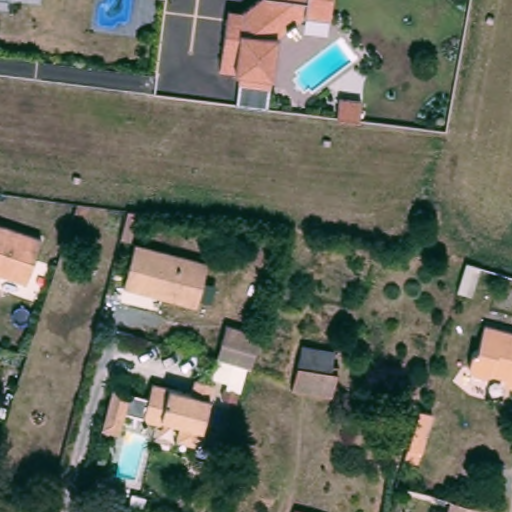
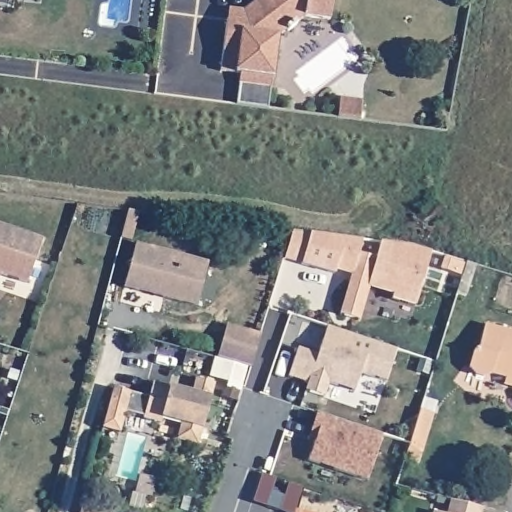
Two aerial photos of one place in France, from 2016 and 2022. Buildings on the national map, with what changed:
unchanged [(227,15),(229,5),(243,7),(252,0),(331,0),(329,14),(304,11),(277,32),(270,82),(239,77),(219,76),(220,66),(227,15)]
unchanged [(362,101),(359,121),(337,118),(339,98),(362,101)]
unchanged [(143,212),(135,241),(125,238),(133,211),(143,212)]
unchanged [(25,285),(0,278),(0,222),(40,236),(25,285)]
new [(292,231),(362,239),(357,252),(376,258),(382,242),(411,245),(430,251),(414,305),(391,298),(394,289),(369,282),(358,320),(339,315),(352,270),(336,265),(334,273),(284,259),(292,231)]
unchanged [(200,307),(166,297),(167,295),(144,288),(143,291),(128,287),(140,243),(213,262),(200,307)]
unchanged [(512,330),(512,377),(497,373),(488,377),(480,375),(474,367),(478,351),(483,348),(489,324),(512,330)]
unchanged [(254,367),(220,359),(220,358),(229,325),(267,335),(254,367)]
new [(298,348),(318,353),(326,327),(395,350),(385,382),(359,372),(352,391),(328,383),(324,398),(303,392),(306,382),(288,377),(298,348)]
demolished [(336,395),(296,389),(305,346),(339,351),(336,364),(344,365),(336,395)]
unchanged [(203,445),(182,439),(186,423),(166,418),(165,423),(148,418),(148,417),(129,412),(123,432),(105,428),(116,388),(153,397),(157,383),(196,393),(200,378),(219,383),(214,398),(203,445)]
unchanged [(237,411),(223,406),(228,389),(242,393),(237,411)]
unchanged [(419,452),(407,447),(408,442),(419,410),(432,413),(419,452)]
new [(306,439),(309,429),(314,413),(381,435),(365,481),(306,461),(313,441),(306,439)]
unchanged [(487,508),(485,512),(452,512),(456,500),(487,508)]
unchanged [(309,512),(299,512),(299,510),(309,512)]

